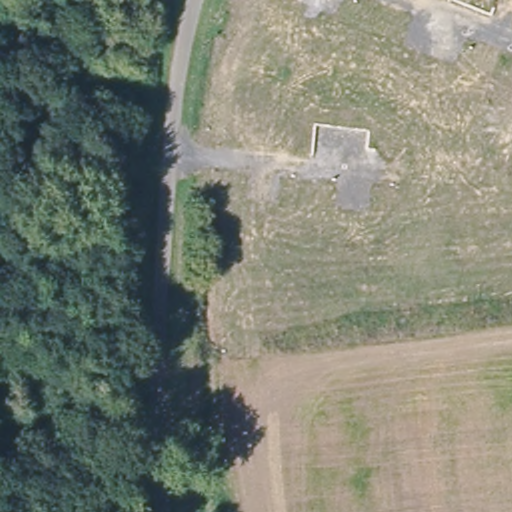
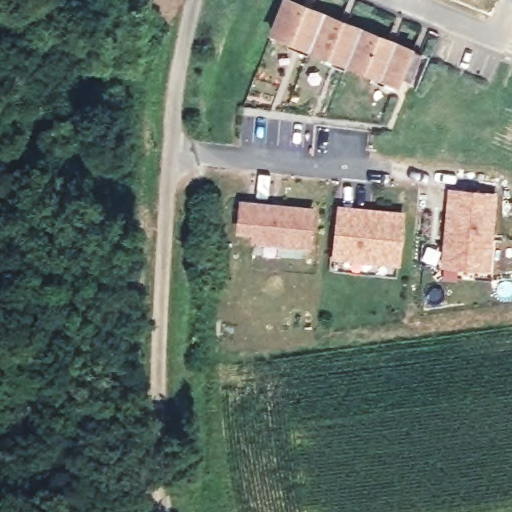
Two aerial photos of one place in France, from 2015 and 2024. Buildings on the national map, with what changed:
new [(315,47),(311,53),(291,45),(295,38),(276,31),(289,0),(298,0),(372,31),(359,65),(351,62),(348,69),(328,60),(331,53),(315,47)]
new [(359,65),(372,31),(426,53),(415,80),(405,75),(402,82),(400,82),(397,89),(377,81),(380,74),(359,65)]
new [(454,191),(497,195),(490,268),(447,265),(454,191)]
new [(316,208),(313,250),(252,244),(252,235),(237,235),(240,201),(316,208)]
new [(342,207),(405,212),(400,260),(337,254),(342,207)]

